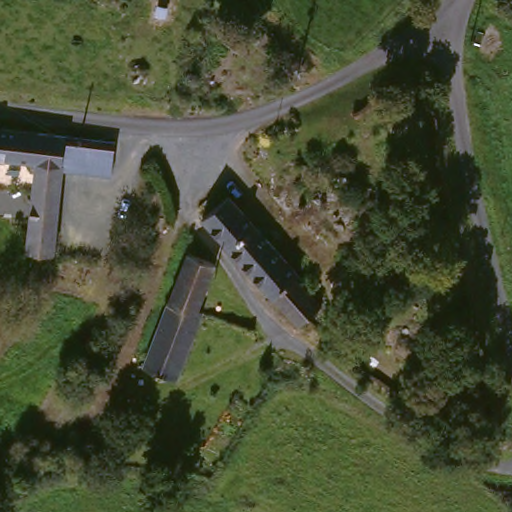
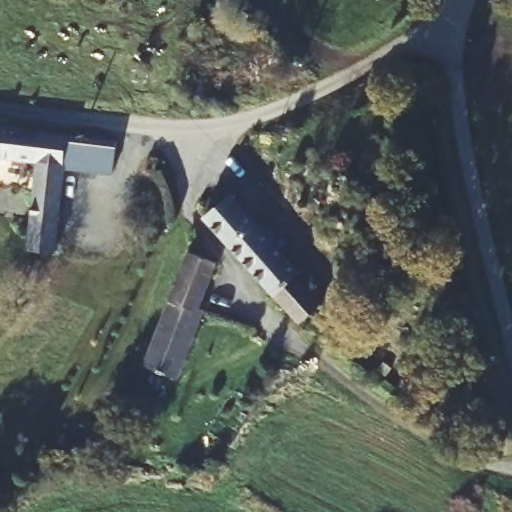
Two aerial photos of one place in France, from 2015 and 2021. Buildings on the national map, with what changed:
unchanged [(36,220),(40,171),(24,169),(25,159),(0,156),(0,124),(41,129),(40,159),(66,160),(66,164),(60,249),(35,247),(36,220)]
unchanged [(67,131),(118,137),(115,170),(66,164),(66,160),(40,159),(41,129),(67,131)]
unchanged [(302,282),(317,298),(310,307),(323,321),(315,333),(207,217),(212,214),(229,198),(295,268),(292,273),(302,282)]
unchanged [(192,250),(217,255),(203,307),(177,300),(192,250)]
unchanged [(177,300),(203,307),(206,309),(187,378),(157,370),(177,300)]

